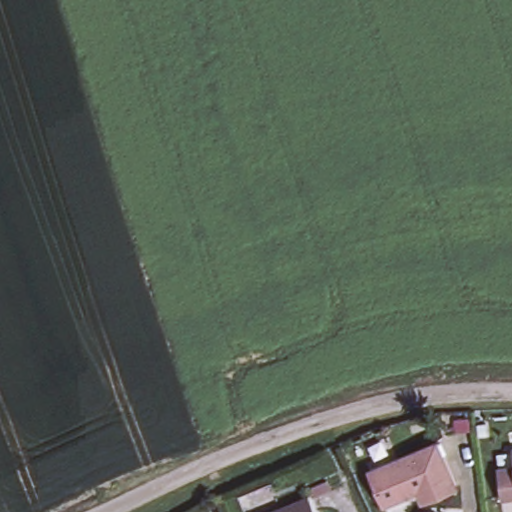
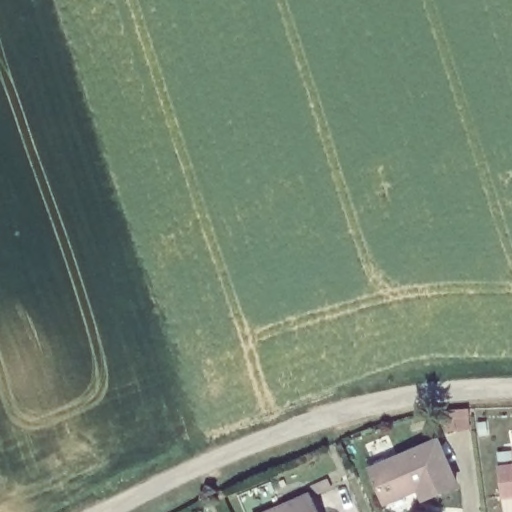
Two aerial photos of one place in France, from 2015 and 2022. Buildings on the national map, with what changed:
unchanged [(438,442),(457,486),(425,499),(420,489),(386,504),(371,471),(438,442)]
unchanged [(495,470),(510,468),(508,449),(512,449),(512,497),(498,499),(495,470)]
unchanged [(308,491),(305,483),(326,475),(330,484),(310,492),(319,512),(258,512),(308,491)]

